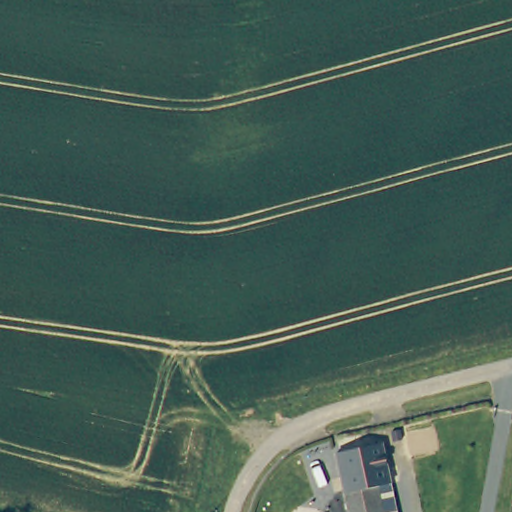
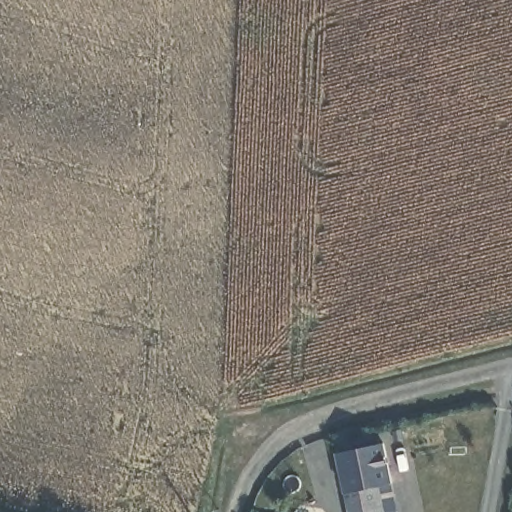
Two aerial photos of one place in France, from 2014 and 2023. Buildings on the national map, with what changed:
unchanged [(398,512),(351,512),(336,451),(381,441),(398,512)]

